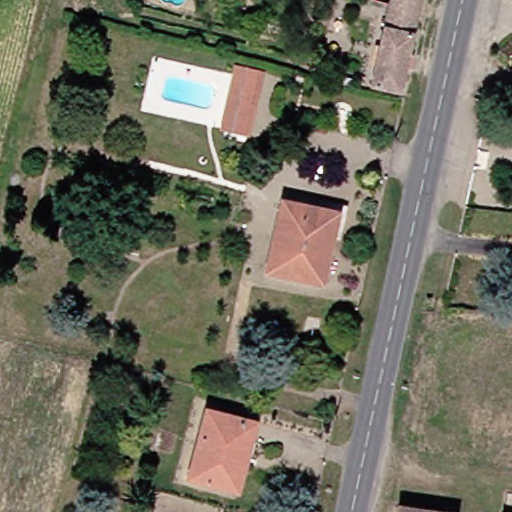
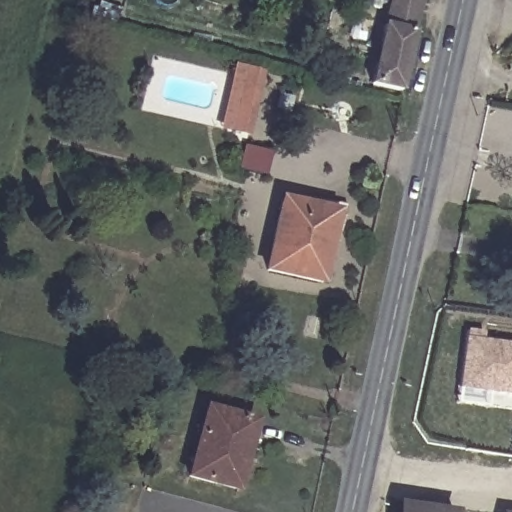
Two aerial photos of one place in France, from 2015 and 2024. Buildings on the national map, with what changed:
unchanged [(381,0),(412,0),(392,90),(360,83),(381,0)]
unchanged [(245,67),(254,68),(248,95),(251,96),(244,133),(231,130),(245,67)]
unchanged [(293,94),(295,83),(310,86),(308,97),(293,94)]
unchanged [(258,263),(271,195),(316,205),(330,208),(324,239),(316,279),(258,263)]
new [(467,338),(512,344),(512,394),(460,387),(467,338)]
unchanged [(197,407),(244,419),(229,484),(182,473),(197,407)]
unchanged [(435,512),(389,512),(390,506),(435,512)]

